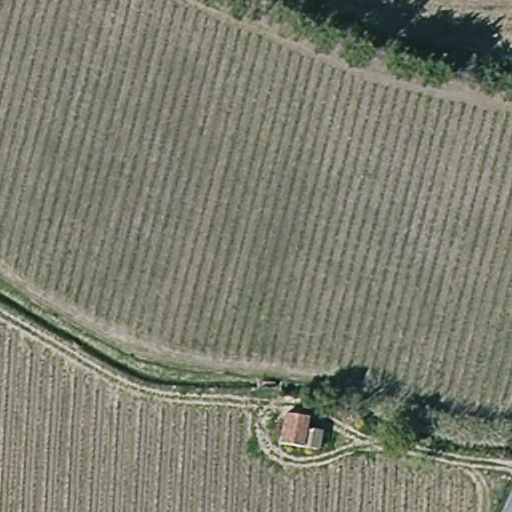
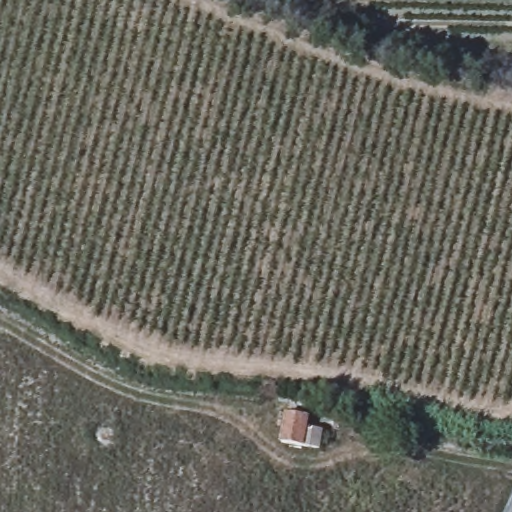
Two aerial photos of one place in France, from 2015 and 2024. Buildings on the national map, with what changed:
unchanged [(277,445),(278,415),(308,418),(308,432),(316,432),(316,447),(277,445)]

